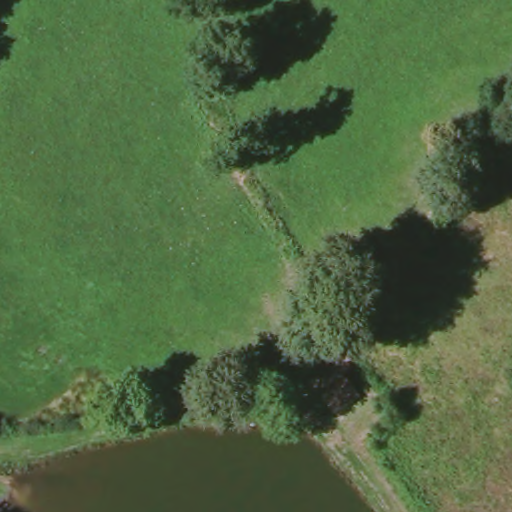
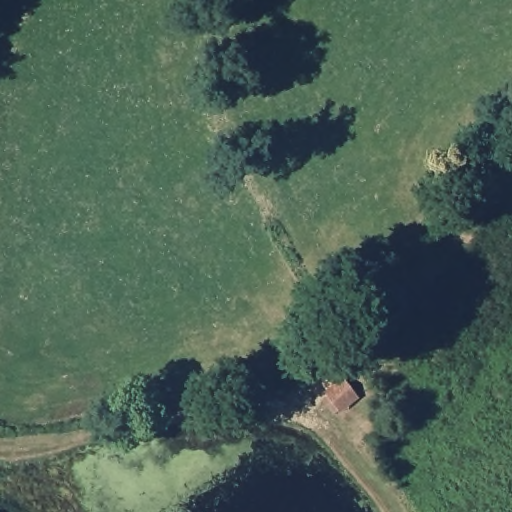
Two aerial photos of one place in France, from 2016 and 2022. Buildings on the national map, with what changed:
unchanged [(346,376),(365,399),(345,421),(323,397),(346,376)]

